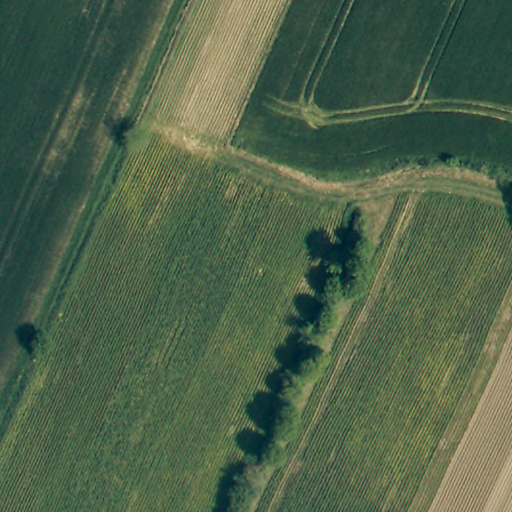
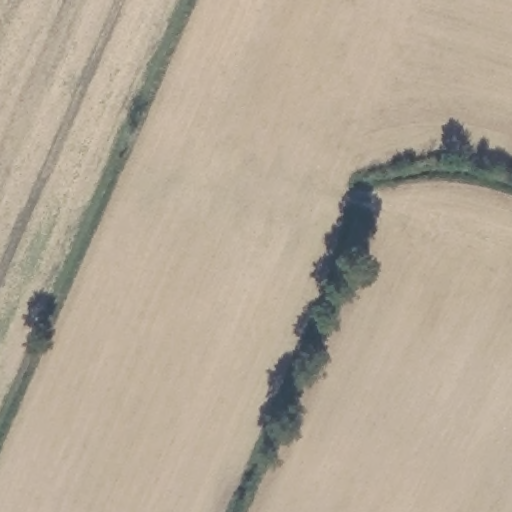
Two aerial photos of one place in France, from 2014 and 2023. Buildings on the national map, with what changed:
[]

